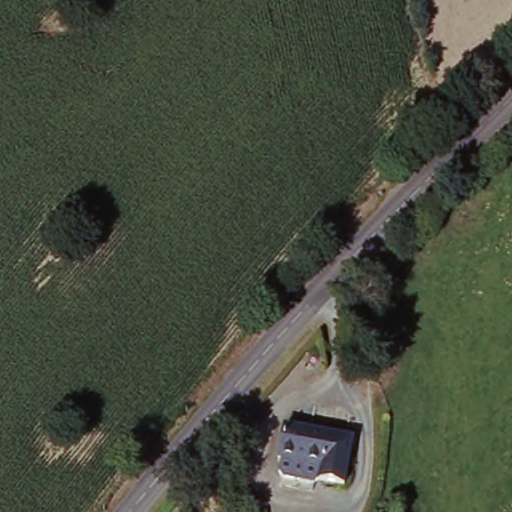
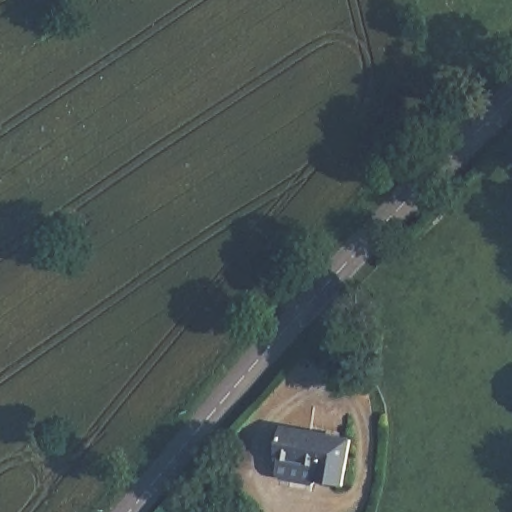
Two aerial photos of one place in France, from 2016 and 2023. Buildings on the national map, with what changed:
unchanged [(278,477),(290,433),(360,447),(351,492),(278,477)]

